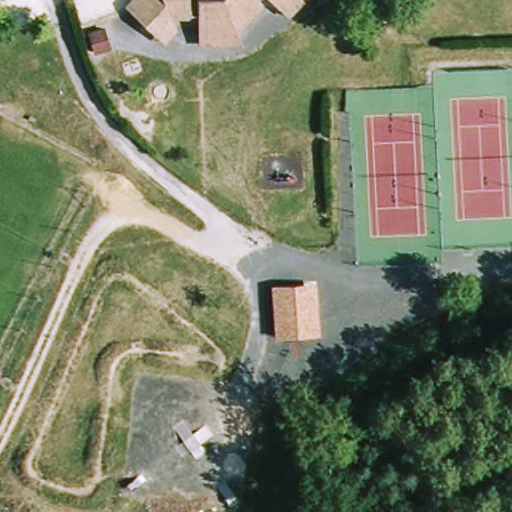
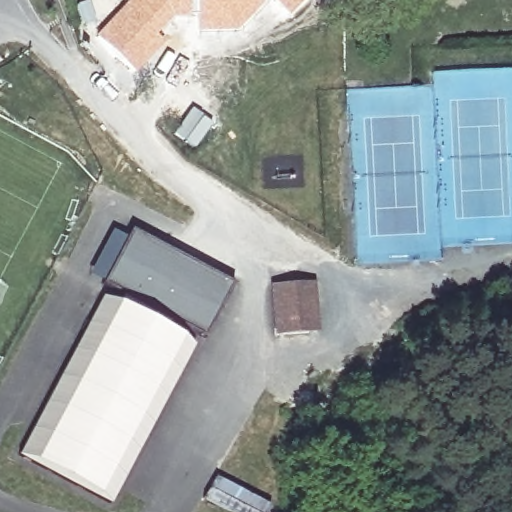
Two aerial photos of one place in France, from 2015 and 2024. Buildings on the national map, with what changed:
unchanged [(202,45),(202,34),(201,18),(175,18),(171,21),(181,30),(167,45),(158,36),(131,11),(142,0),(265,0),(264,1),(266,4),(240,33),(240,45),(202,45)]
unchanged [(291,16),(274,0),(307,0),(291,16)]
new [(192,105),(212,122),(192,150),(171,135),(192,105)]
new [(204,336),(101,286),(131,230),(231,283),(204,336)]
unchanged [(315,281),(318,331),(275,335),(271,283),(315,281)]
new [(101,295),(194,345),(110,503),(17,454),(101,295)]
new [(264,512),(225,512),(202,499),(215,478),(266,507),(264,512)]

